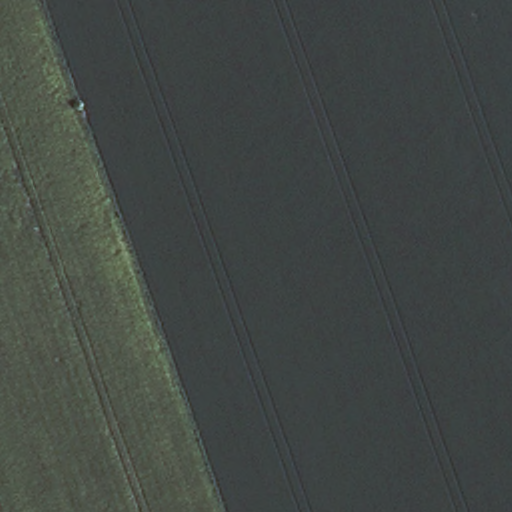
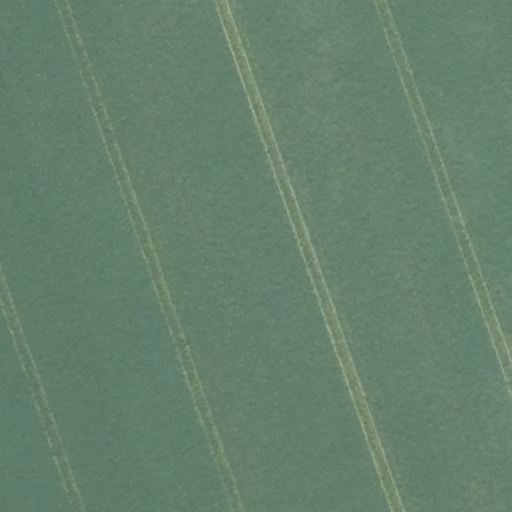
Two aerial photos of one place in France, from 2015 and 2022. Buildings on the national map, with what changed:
[]

